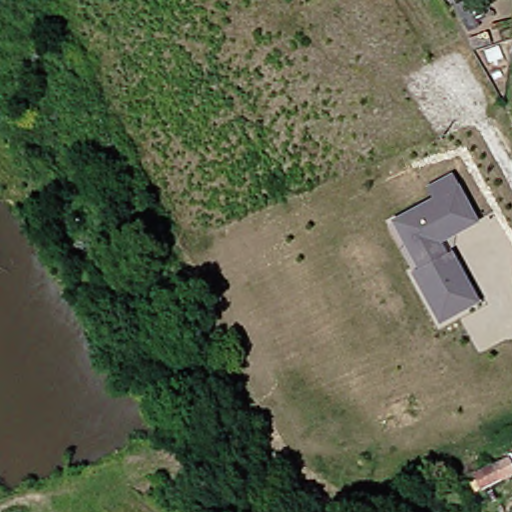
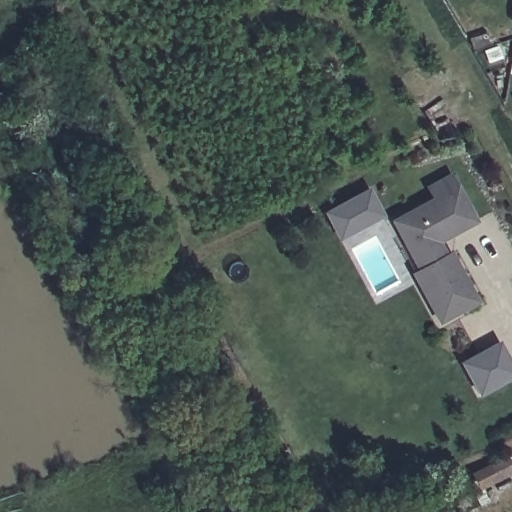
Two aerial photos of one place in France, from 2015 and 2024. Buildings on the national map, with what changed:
unchanged [(404,236),(392,213),(454,178),(479,223),(447,241),(453,253),(479,300),(443,321),(417,273),(398,240),(404,236)]
new [(339,242),(324,212),(369,186),(386,217),(339,242)]
new [(459,362),(500,340),(512,362),(512,379),(478,398),(459,362)]

